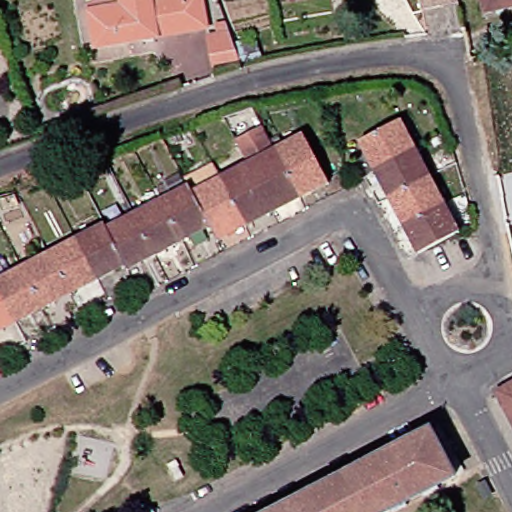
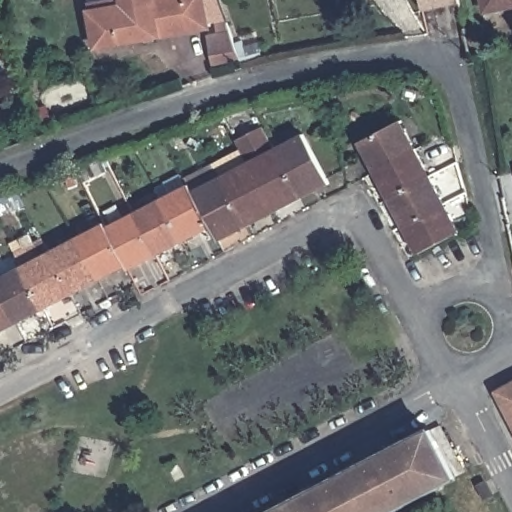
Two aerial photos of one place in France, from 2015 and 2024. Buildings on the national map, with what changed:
unchanged [(199,31),(98,56),(90,21),(87,14),(119,6),(117,0),(192,0),(199,31)]
unchanged [(462,14),(426,21),(422,0),(460,0),(462,14)]
unchanged [(486,0),(512,0),(512,8),(487,11),(486,0)]
unchanged [(242,36),(257,33),(261,44),(235,54),(217,60),(209,25),(216,24),(214,12),(223,10),(230,32),(239,30),(242,36)]
unchanged [(365,143),(405,121),(420,152),(381,175),(365,143)]
unchanged [(278,215),(251,166),(240,142),(270,127),(282,150),(308,199),(278,215)]
unchanged [(310,136),(335,185),(308,199),(282,150),(310,136)]
unchanged [(395,202),(381,175),(420,152),(436,180),(395,202)]
unchanged [(252,230),(225,180),(251,166),(278,215),(252,230)]
unchanged [(191,180),(217,167),(225,180),(252,230),(226,244),(218,229),(199,193),(191,180)]
unchanged [(190,244),(162,194),(190,177),(191,180),(199,193),(218,229),(190,244)]
unchanged [(410,230),(395,202),(436,180),(451,207),(410,230)]
unchanged [(161,260),(134,209),(162,194),(190,244),(161,260)]
unchanged [(467,234),(426,256),(410,230),(451,207),(467,234)]
unchanged [(134,209),(161,260),(137,273),(132,265),(109,224),(134,209)]
unchanged [(104,281),(80,239),(109,224),(132,265),(104,281)]
unchanged [(76,296),(53,254),(80,239),(104,281),(76,296)]
unchanged [(51,310),(28,267),(53,254),(76,296),(51,310)]
unchanged [(1,281),(28,267),(51,310),(25,323),(0,336),(0,282),(1,281)]
unchanged [(504,396),(512,392),(512,411),(504,396)]
unchanged [(441,440),(458,471),(451,475),(380,512),(299,512),(435,443),(441,440)]

